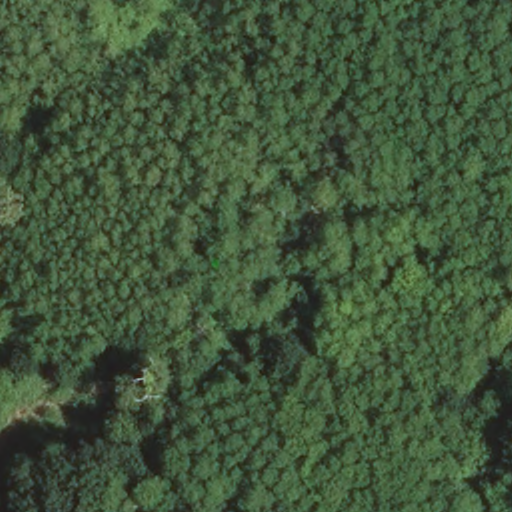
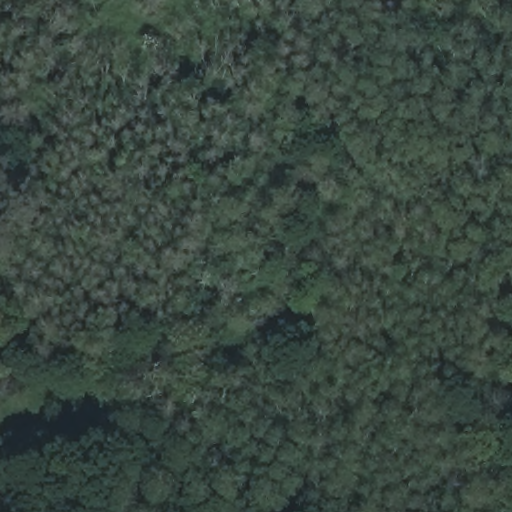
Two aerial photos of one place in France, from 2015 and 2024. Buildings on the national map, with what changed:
[]

